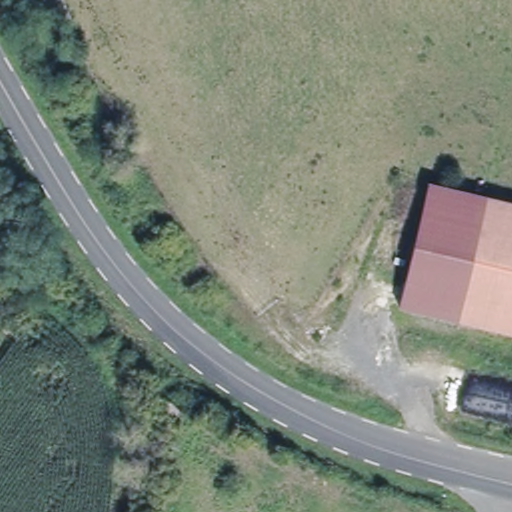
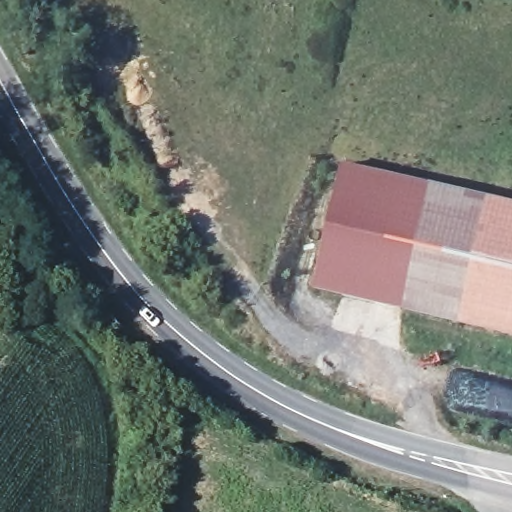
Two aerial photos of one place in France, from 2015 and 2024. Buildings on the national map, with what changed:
new [(314,288),(343,165),(434,187),(404,310),(314,288)]
unchanged [(512,206),(512,336),(404,310),(434,187),(512,206)]
unchanged [(168,434),(156,420),(170,407),(181,420),(168,434)]

